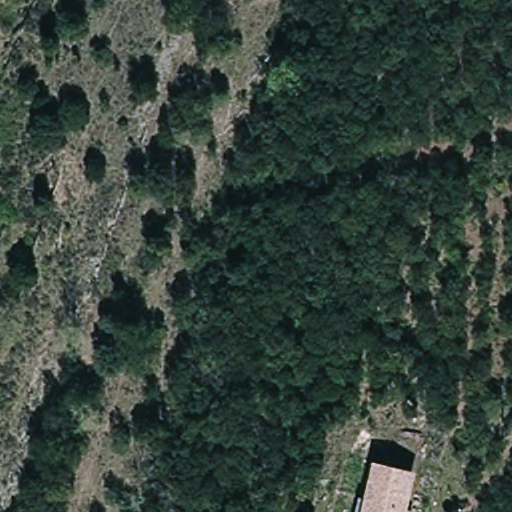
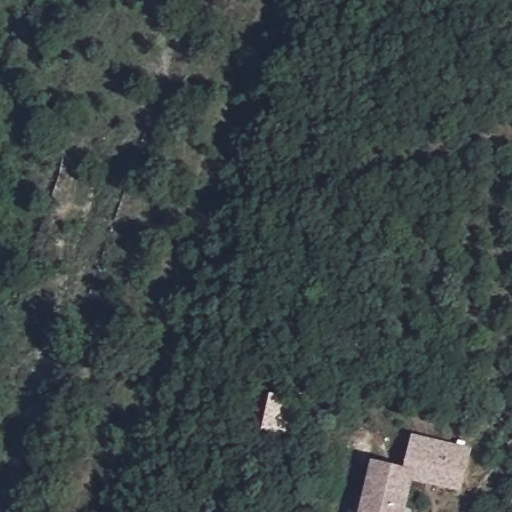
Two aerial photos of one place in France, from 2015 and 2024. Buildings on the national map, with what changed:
new [(473,449),(462,492),(414,482),(416,472),(406,469),(414,435),(473,449)]
unchanged [(407,512),(361,512),(371,461),(416,472),(407,512)]

